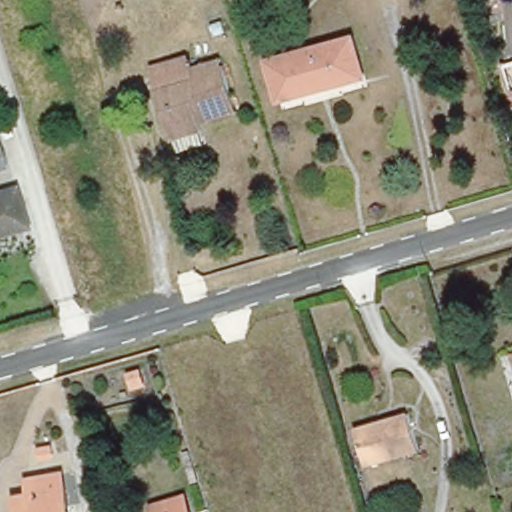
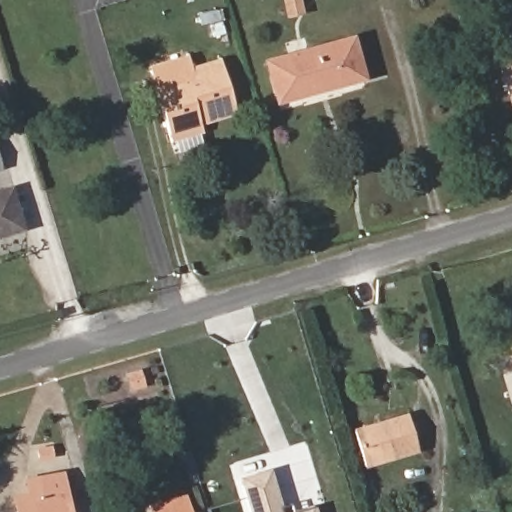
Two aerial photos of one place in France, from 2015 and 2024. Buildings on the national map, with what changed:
unchanged [(362,76),(279,101),(268,63),(351,39),(362,76)]
unchanged [(171,130),(166,131),(163,122),(156,98),(150,79),(161,75),(190,67),(188,61),(185,51),(211,44),(214,53),(227,95),(229,103),(194,114),(196,122),(199,133),(174,140),(171,130)]
unchanged [(0,164),(1,166),(0,166),(0,164)]
unchanged [(22,226),(0,233),(0,193),(11,189),(22,226)]
unchanged [(509,351),(507,344),(512,343),(512,363),(509,351)]
unchanged [(415,442),(358,457),(349,424),(406,408),(415,442)]
new [(287,502),(290,510),(309,504),(311,512),(248,512),(238,477),(266,469),(277,504),(287,502)]
unchanged [(30,501),(28,485),(62,479),(67,512),(17,512),(16,504),(30,501)]
unchanged [(183,502),(185,512),(153,512),(153,511),(183,502)]

